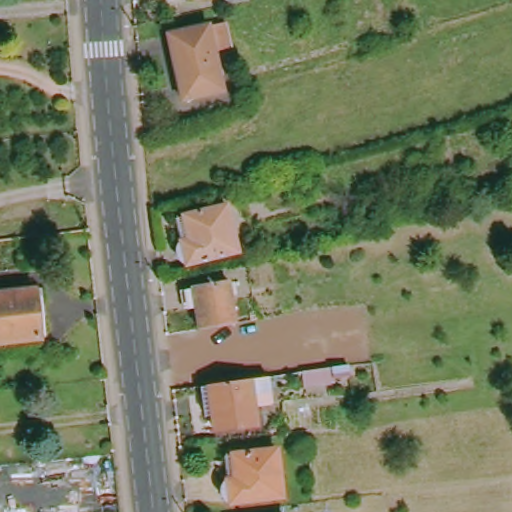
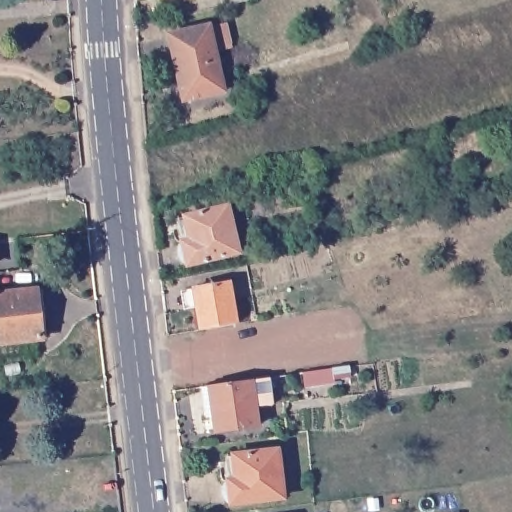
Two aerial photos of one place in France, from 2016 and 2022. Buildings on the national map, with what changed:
unchanged [(219,20),(226,46),(210,49),(218,90),(179,98),(166,31),(219,20)]
unchanged [(268,179),(271,195),(251,200),(247,185),(268,179)]
unchanged [(227,210),(236,254),(185,265),(181,244),(176,244),(175,240),(173,231),(170,230),(169,225),(177,224),(176,220),(227,210)]
unchanged [(188,291),(225,285),(231,323),(194,329),(188,291)]
unchanged [(301,289),(305,315),(293,315),(290,300),(269,304),(268,294),(301,289)]
unchanged [(40,343),(0,347),(0,295),(33,292),(40,343)]
unchanged [(339,380),(309,385),(306,371),(337,367),(339,380)]
unchanged [(263,382),(267,409),(248,412),(251,430),(203,436),(197,391),(245,385),(263,382)]
unchanged [(275,449),(283,496),(230,505),(223,458),(275,449)]

